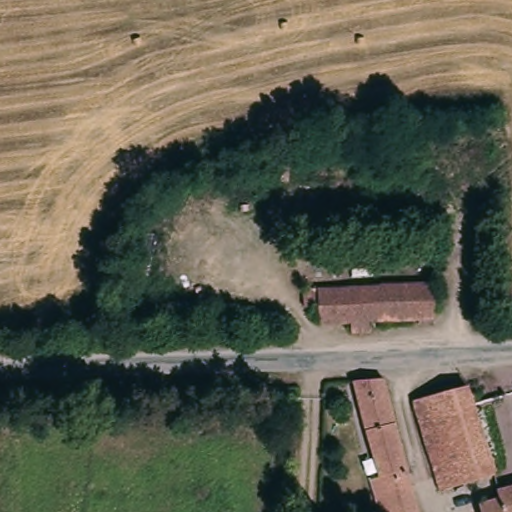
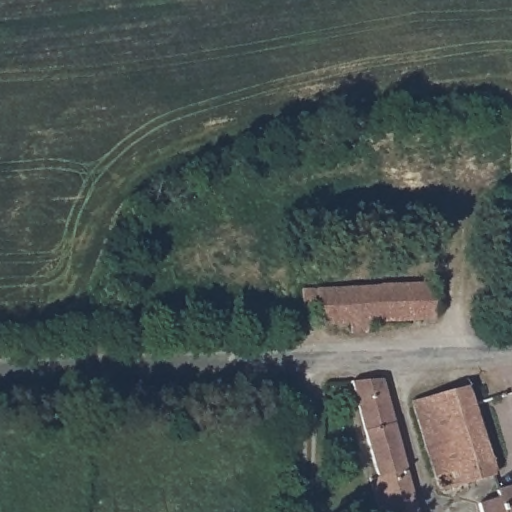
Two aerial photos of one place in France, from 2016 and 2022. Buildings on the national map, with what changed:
unchanged [(373,323),(374,332),(357,332),(356,325),(326,325),(324,308),(309,307),(307,287),(438,284),(440,318),(373,323)]
unchanged [(373,478),(381,476),(358,382),(387,380),(422,512),(381,512),(382,510),(373,478)]
unchanged [(438,491),(412,400),(467,386),(492,476),(438,491)]
unchanged [(512,512),(507,512),(502,491),(512,488),(512,512)]
unchanged [(498,503),(496,492),(502,491),(507,512),(481,512),(480,507),(498,503)]

